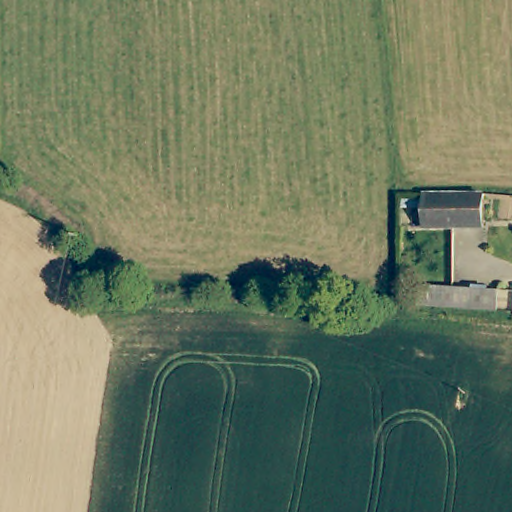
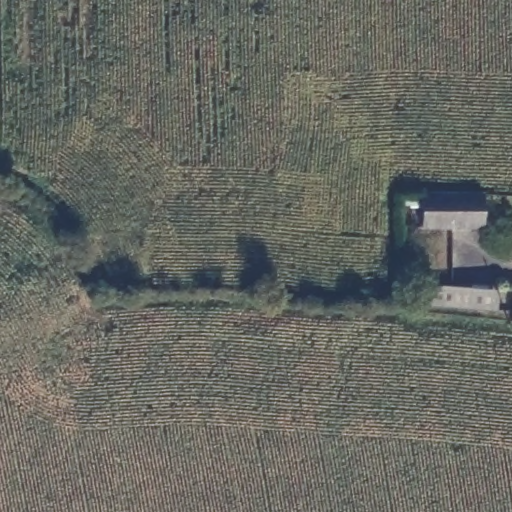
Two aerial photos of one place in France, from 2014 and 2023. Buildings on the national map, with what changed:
unchanged [(489,223),(418,227),(416,199),(489,194),(489,223)]
unchanged [(418,306),(420,281),(502,286),(500,311),(418,306)]

